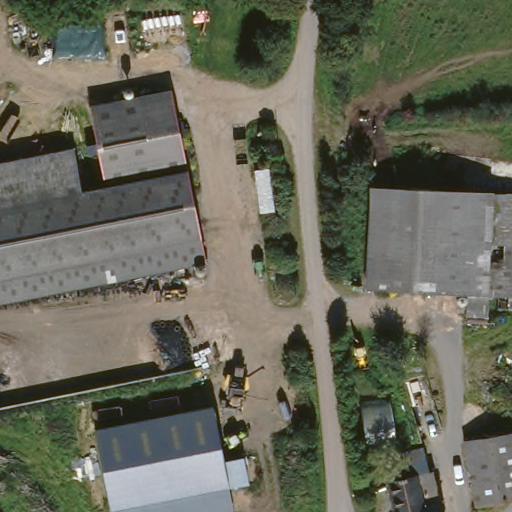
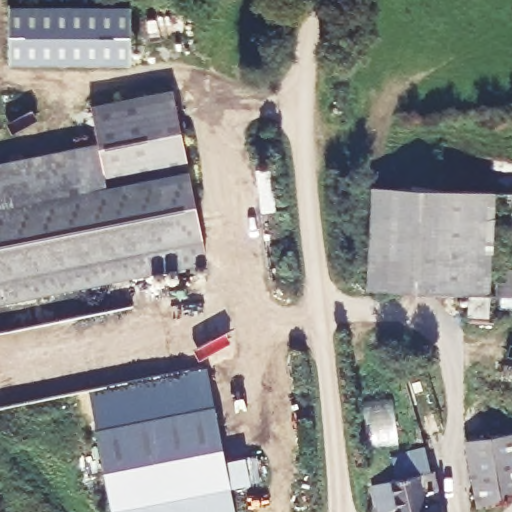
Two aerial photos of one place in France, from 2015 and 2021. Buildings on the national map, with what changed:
new [(9,7),(130,8),(129,65),(9,65),(9,7)]
unchanged [(101,191),(86,110),(167,94),(200,266),(0,305),(0,210),(77,195),(101,191)]
new [(92,144),(101,191),(77,195),(69,156),(0,170),(0,162),(2,162),(92,144)]
unchanged [(77,195),(0,210),(0,170),(69,156),(77,195)]
unchanged [(366,291),(369,190),(434,192),(431,293),(366,291)]
unchanged [(512,194),(512,294),(490,294),(489,319),(464,318),(464,294),(431,293),(434,192),(512,194)]
unchanged [(394,447),(361,450),(359,407),(389,401),(394,447)]
unchanged [(224,461),(244,457),(249,484),(229,487),(234,512),(112,512),(96,429),(214,406),(224,461)]
unchanged [(475,510),(464,444),(512,435),(512,496),(505,505),(475,510)]
unchanged [(432,501),(435,512),(385,512),(378,483),(429,470),(432,501)]

